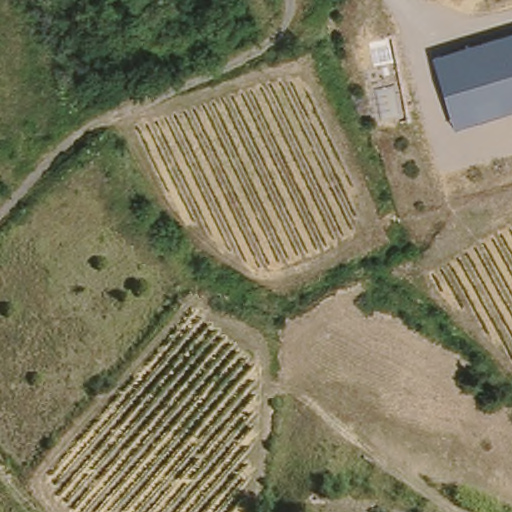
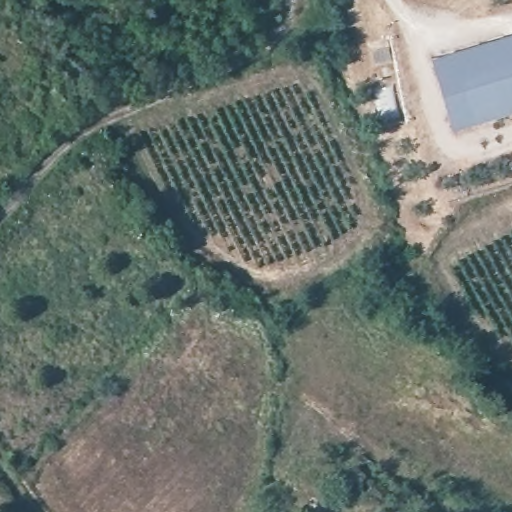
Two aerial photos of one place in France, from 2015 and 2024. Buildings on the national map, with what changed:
unchanged [(453,129),(432,56),(512,31),(512,112),(453,129)]

